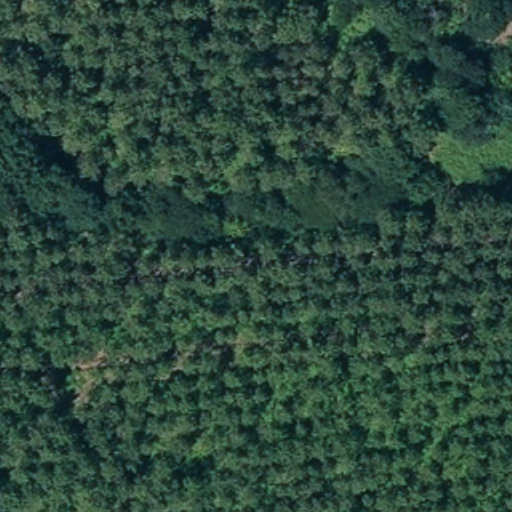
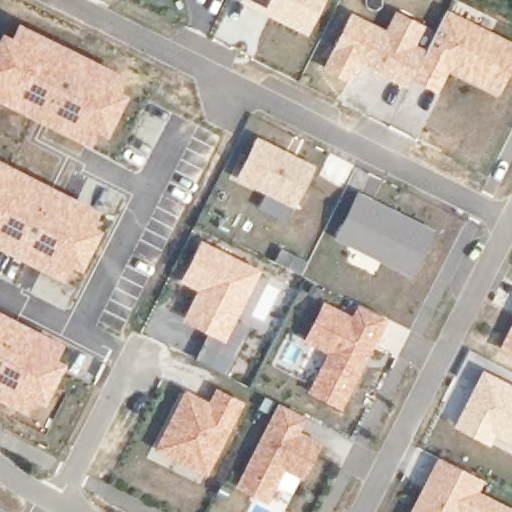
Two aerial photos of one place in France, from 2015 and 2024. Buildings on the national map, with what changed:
new [(240,3),(241,0),(328,0),(310,36),(240,3)]
new [(448,10),(512,42),(512,71),(500,96),(450,71),(438,95),(411,82),(425,54),(448,10)]
new [(387,35),(392,26),(416,38),(412,46),(425,54),(410,86),(371,68),(374,65),(361,59),(350,79),(327,68),(353,17),(387,35)]
new [(0,31),(10,35),(17,22),(106,65),(129,79),(123,90),(129,93),(106,138),(97,134),(90,147),(0,102),(0,32),(0,31)]
new [(317,166),(295,210),(235,180),(259,136),(317,166)]
new [(80,200),(109,217),(79,273),(72,270),(65,281),(14,257),(0,250),(0,159),(80,200)]
new [(437,231),(414,277),(335,239),(358,192),(437,231)]
new [(262,271),(226,341),(182,322),(199,291),(180,282),(201,240),(262,271)]
new [(355,320),(362,305),(386,318),(341,406),(313,392),(315,388),(296,380),(314,343),(310,341),(327,305),(355,320)]
new [(65,345),(58,357),(65,361),(35,418),(0,401),(0,311),(65,345)]
new [(512,332),(512,354),(503,350),(512,332)]
new [(512,445),(496,437),(491,447),(453,428),(483,370),(512,384),(512,445)]
new [(210,402),(217,388),(246,403),(208,477),(155,450),(185,389),(210,402)]
new [(308,418),(302,431),(323,442),(303,480),(285,471),(269,503),(236,488),(280,403),(308,418)]
new [(480,491),(512,507),(512,512),(410,512),(439,458),(485,481),(480,491)]

